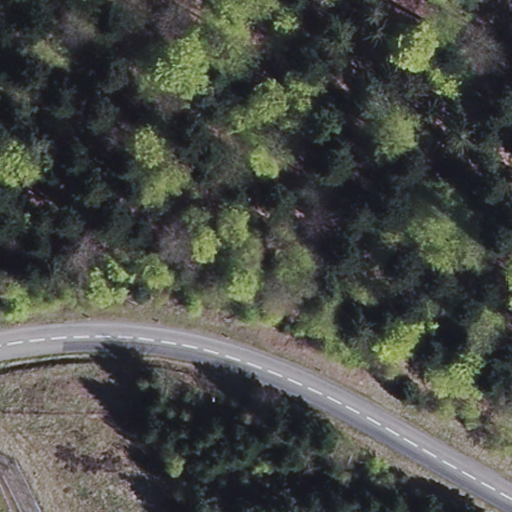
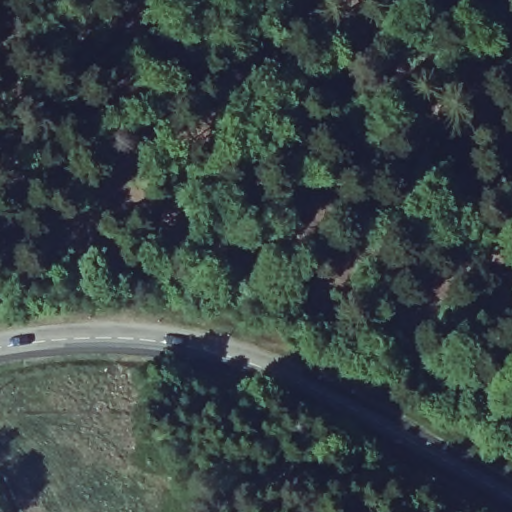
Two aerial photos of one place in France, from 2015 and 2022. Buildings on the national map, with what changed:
[]

